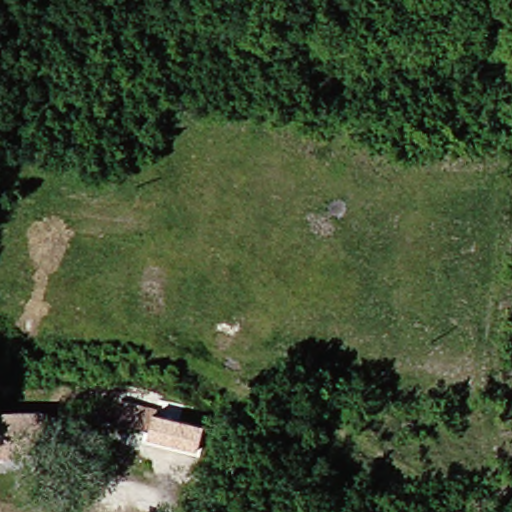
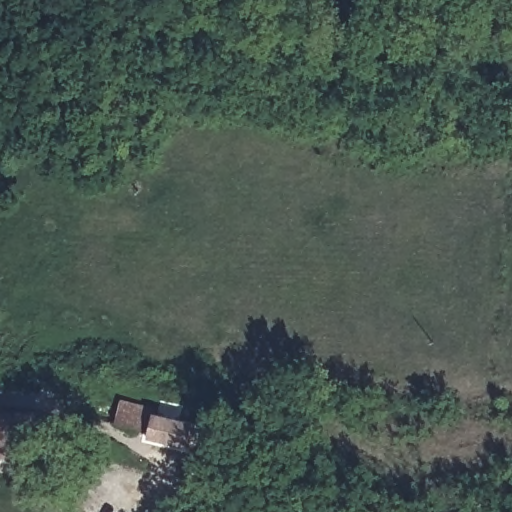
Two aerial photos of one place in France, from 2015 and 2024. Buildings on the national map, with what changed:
unchanged [(199,418),(193,443),(159,438),(160,429),(112,424),(114,419),(118,399),(163,404),(162,410),(162,413),(199,418)]
unchanged [(27,404),(27,434),(15,434),(15,451),(0,451),(0,404),(27,404)]
unchanged [(50,417),(80,417),(80,434),(50,434),(50,417)]

